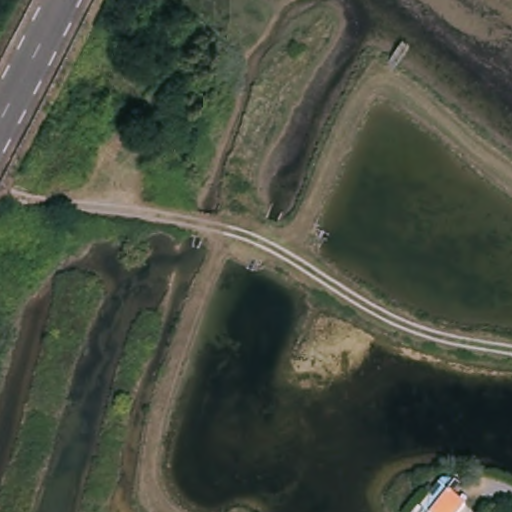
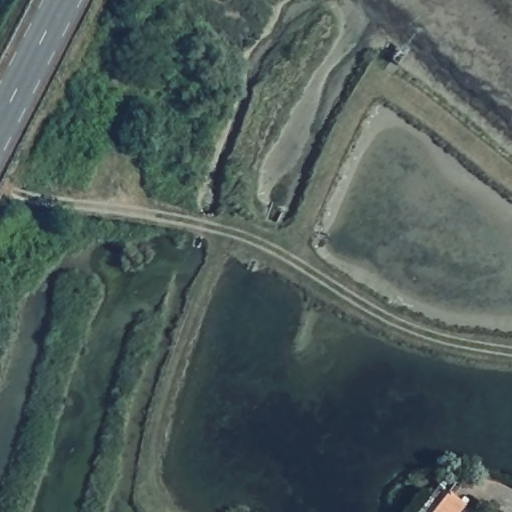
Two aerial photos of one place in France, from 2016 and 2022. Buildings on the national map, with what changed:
unchanged [(461,512),(437,512),(450,497),(463,509),(461,512)]

